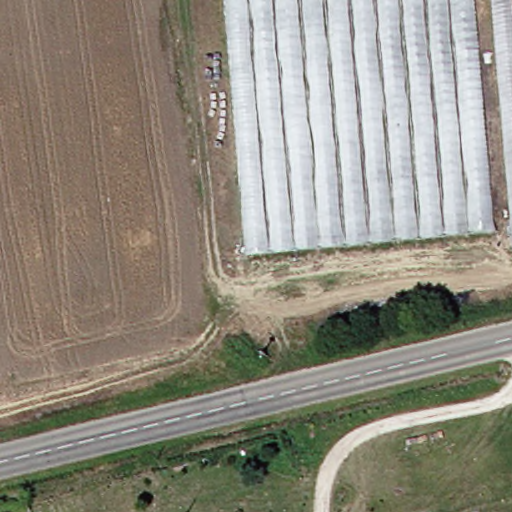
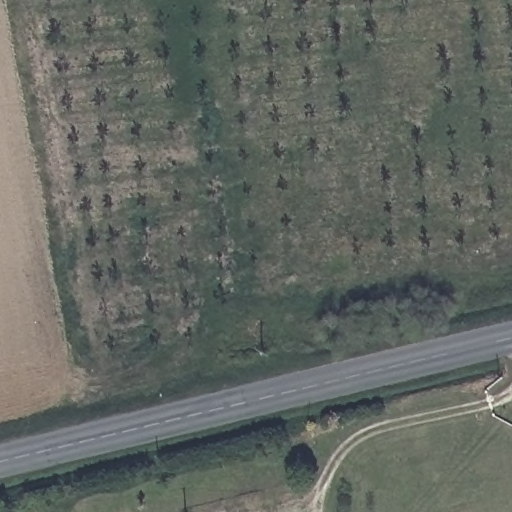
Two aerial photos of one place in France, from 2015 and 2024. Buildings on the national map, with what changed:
demolished [(249,255),(227,0),(477,0),(498,229),(249,255)]
demolished [(495,0),(512,0),(512,191),(495,0)]

